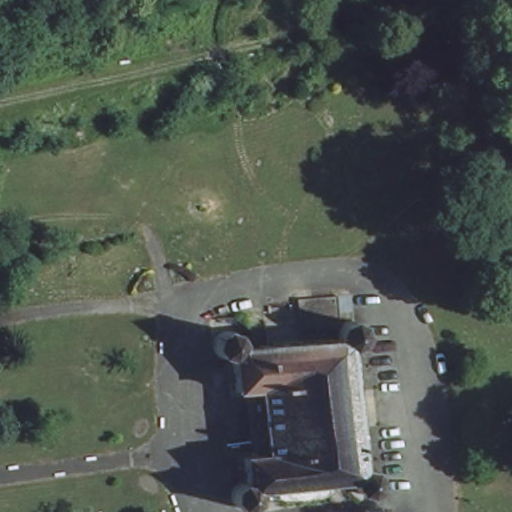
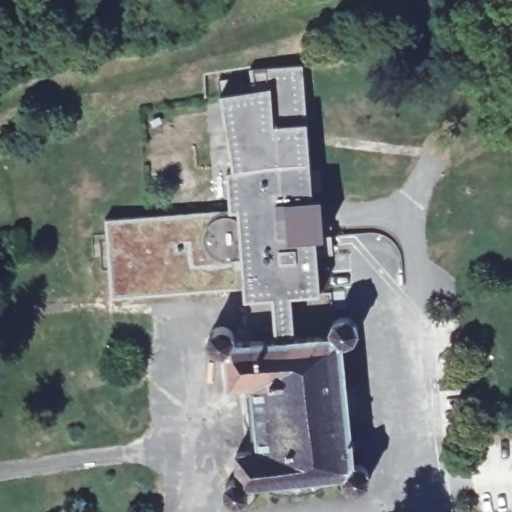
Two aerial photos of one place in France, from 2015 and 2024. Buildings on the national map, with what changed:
new [(243,300),(243,287),(111,297),(105,219),(230,210),(225,172),(232,170),(220,97),(251,92),(250,70),(303,65),(307,121),(313,196),(319,195),(322,240),(315,240),(321,293),(292,295),(297,339),(246,345),(243,300)]
unchanged [(252,386),(230,388),(227,356),(222,356),(217,354),(214,352),(211,348),(209,344),(209,340),(210,335),(213,331),(217,328),(222,327),(225,327),(230,328),(234,330),(237,334),(238,338),(238,344),(237,346),(297,339),(332,335),(332,331),(332,326),(335,321),(337,318),(342,316),(346,315),(351,316),(355,319),(358,323),(360,328),(360,335),(357,339),(354,342),(350,344),(347,344),(343,344),(356,464),(360,464),(365,465),(368,467),(371,471),(372,475),(372,482),(370,486),(367,489),(363,491),(357,492),(352,491),(349,488),(347,486),(345,483),(344,478),(250,486),(251,490),(250,497),(247,502),(242,505),(237,507),(230,505),(226,502),(223,497),(222,492),(222,486),(225,482),(230,479),(234,477),(238,477),(235,453),(256,450),(252,386)]

